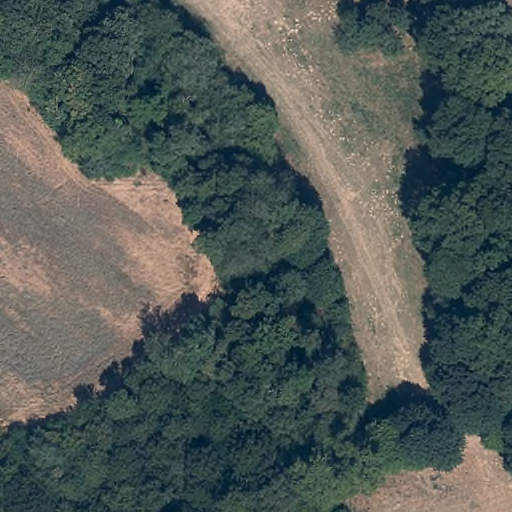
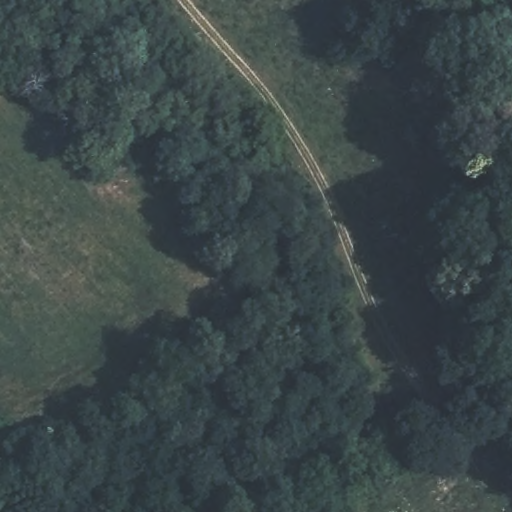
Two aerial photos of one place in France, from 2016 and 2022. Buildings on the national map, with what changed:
[]

